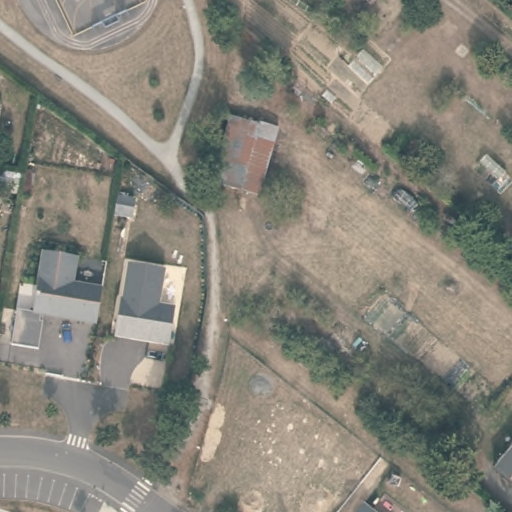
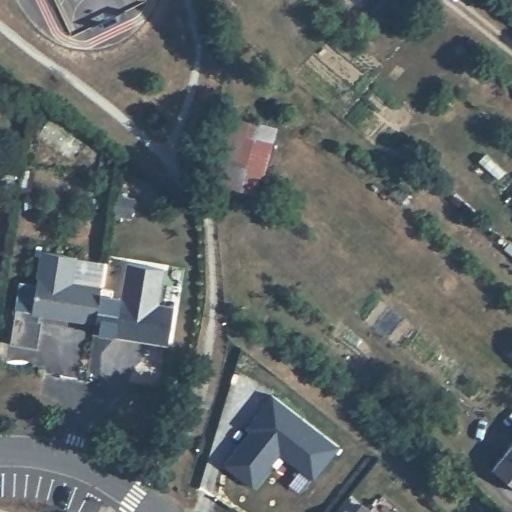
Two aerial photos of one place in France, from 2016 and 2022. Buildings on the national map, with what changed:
unchanged [(229,156),(217,153),(218,148),(220,148),(224,133),(234,135),(236,126),(283,138),(268,194),(266,204),(248,200),(220,193),(227,161),(229,156)]
unchanged [(134,188),(131,205),(116,203),(119,185),(134,188)]
unchanged [(216,204),(217,196),(226,197),(225,206),(216,204)]
unchanged [(507,239),(511,234),(512,234),(512,244),(507,239)]
unchanged [(29,316),(39,255),(72,260),(68,286),(97,291),(92,327),(29,316)]
unchanged [(117,302),(118,302),(124,267),(161,273),(155,308),(171,311),(165,349),(145,346),(141,341),(131,339),(130,343),(110,340),(117,302)]
new [(272,395),(340,447),(315,481),(282,455),(255,489),(226,464),(252,430),(249,427),(272,395)]
unchanged [(494,473),(512,451),(512,488),(494,473)]
unchanged [(358,509),(362,512),(355,512),(358,509)]

